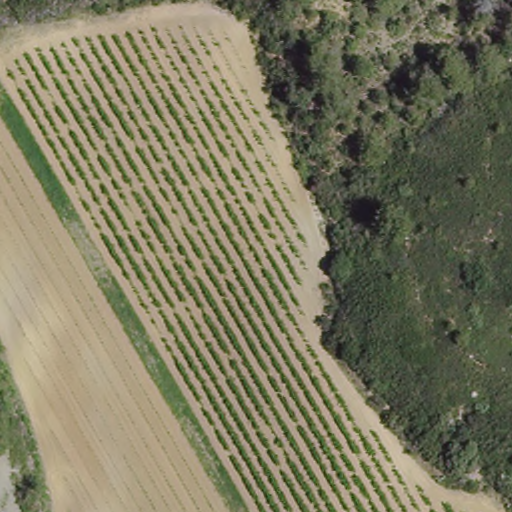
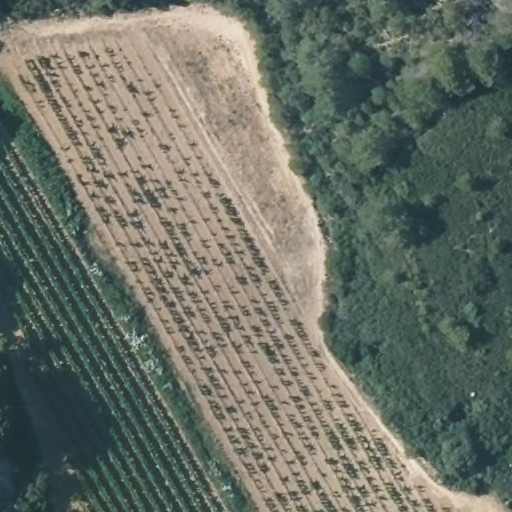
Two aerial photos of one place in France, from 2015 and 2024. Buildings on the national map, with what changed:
unchanged [(17,22),(0,24),(0,4),(17,2),(20,20),(17,22)]

